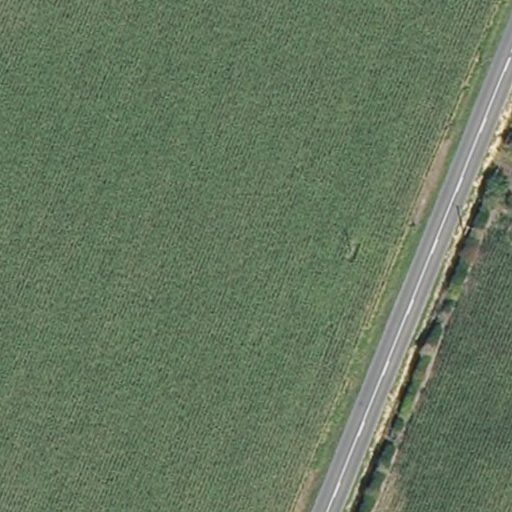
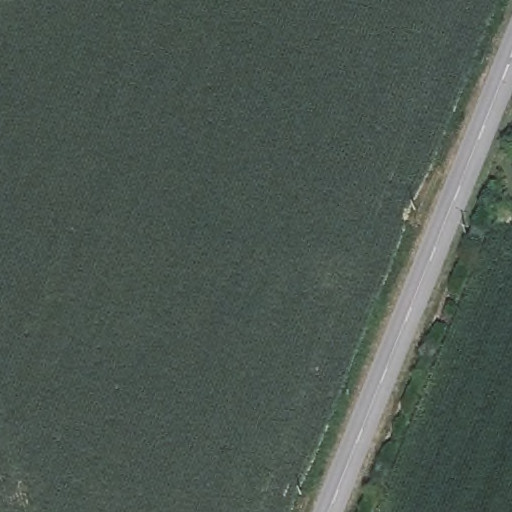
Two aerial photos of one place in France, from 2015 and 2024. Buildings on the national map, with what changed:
[]

